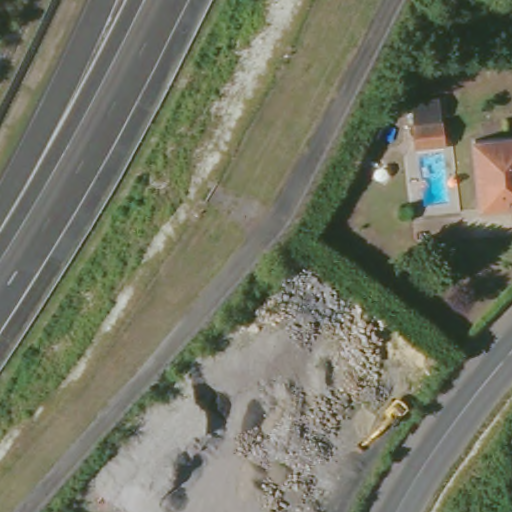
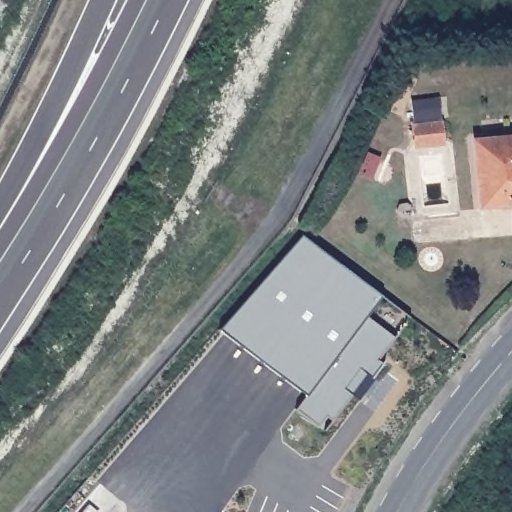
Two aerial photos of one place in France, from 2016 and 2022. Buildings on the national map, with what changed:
unchanged [(413,121),(442,118),(444,131),(430,135),(430,144),(415,146),(413,121)]
unchanged [(474,140),(512,135),(512,204),(481,208),(474,140)]
new [(300,235),(387,301),(414,321),(397,342),(381,364),(386,368),(374,383),(369,379),(327,434),(298,412),(308,399),(219,330),(280,260),(300,235)]

